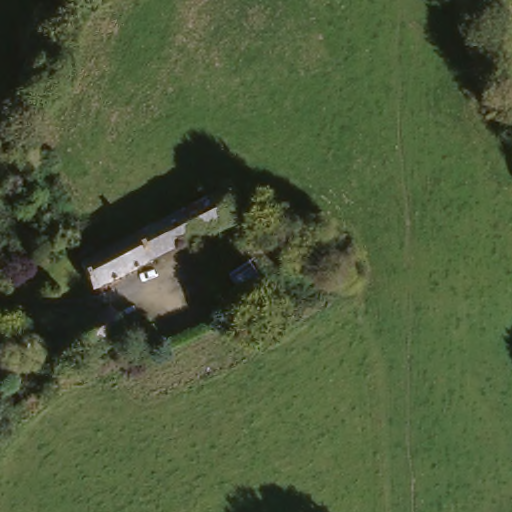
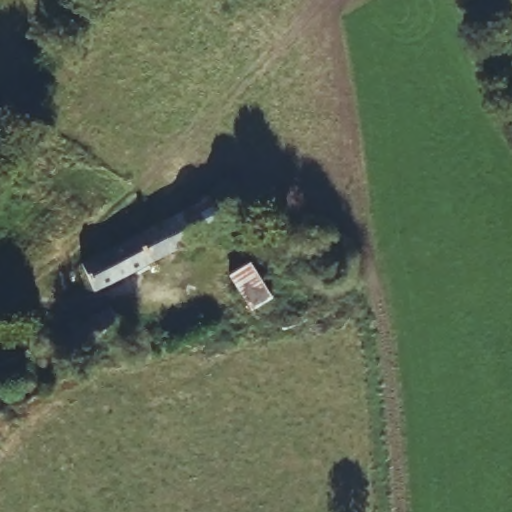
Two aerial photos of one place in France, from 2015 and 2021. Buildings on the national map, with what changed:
unchanged [(146,229),(218,190),(224,196),(231,195),(237,201),(238,208),(231,213),(232,219),(184,243),(92,290),(78,265),(89,259),(146,229)]
unchanged [(228,272),(272,245),(287,266),(279,270),(283,286),(248,308),(228,272)]
unchanged [(106,304),(124,328),(91,351),(86,355),(72,337),(69,332),(106,304)]

